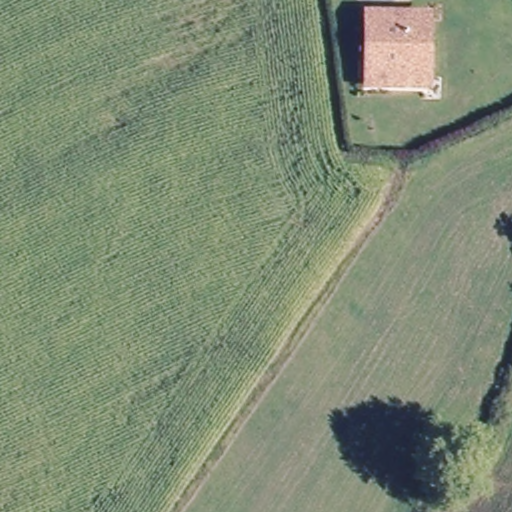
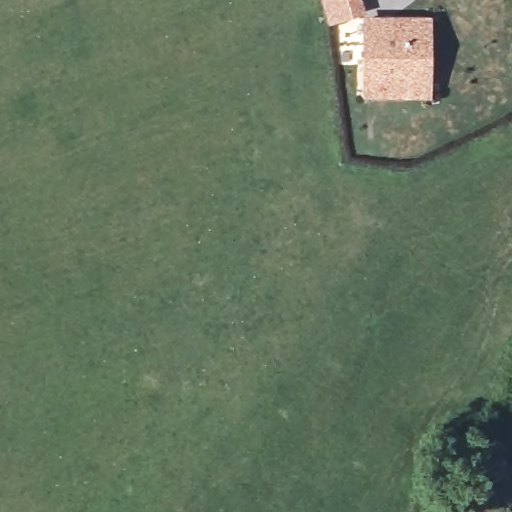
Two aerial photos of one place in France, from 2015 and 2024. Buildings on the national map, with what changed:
new [(322,0),(362,0),(366,14),(329,25),(322,0)]
unchanged [(395,89),(374,90),(372,16),(431,15),(433,67),(433,87),(395,89)]

